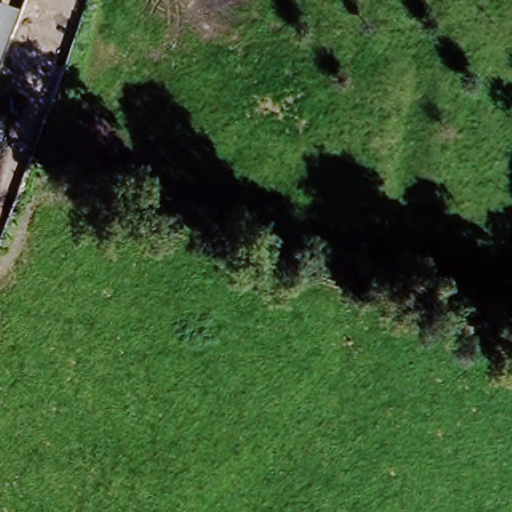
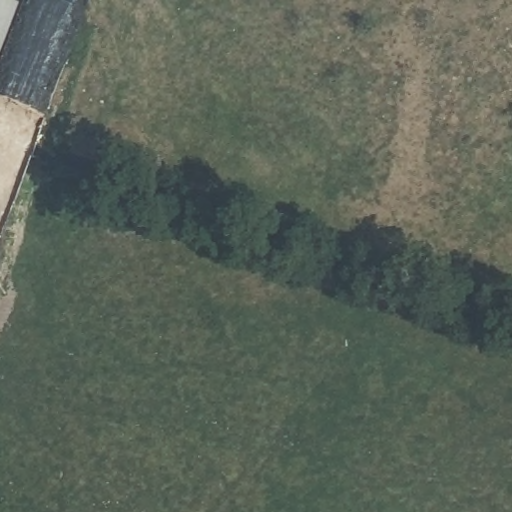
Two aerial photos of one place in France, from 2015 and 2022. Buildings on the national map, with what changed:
unchanged [(0,63),(0,0),(21,7),(0,63)]

